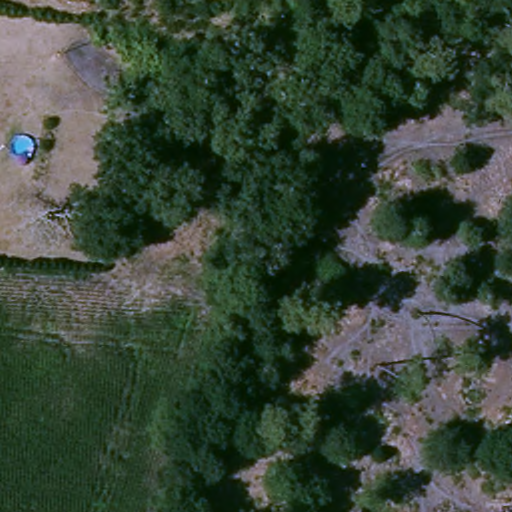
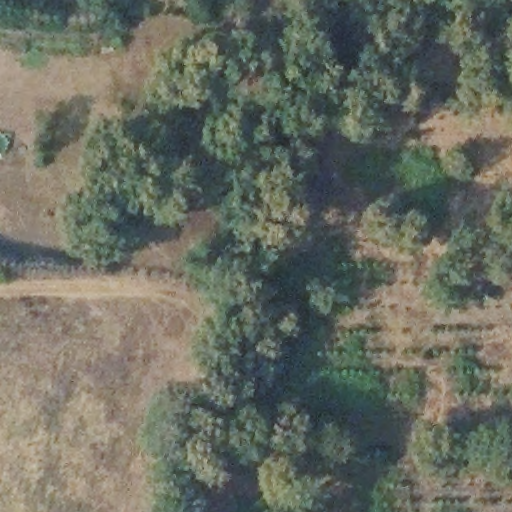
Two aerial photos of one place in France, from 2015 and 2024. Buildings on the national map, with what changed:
unchanged [(97,0),(124,0),(123,5),(97,4),(97,0)]

